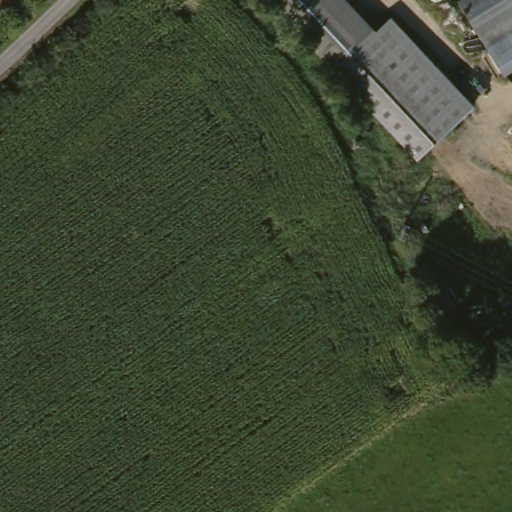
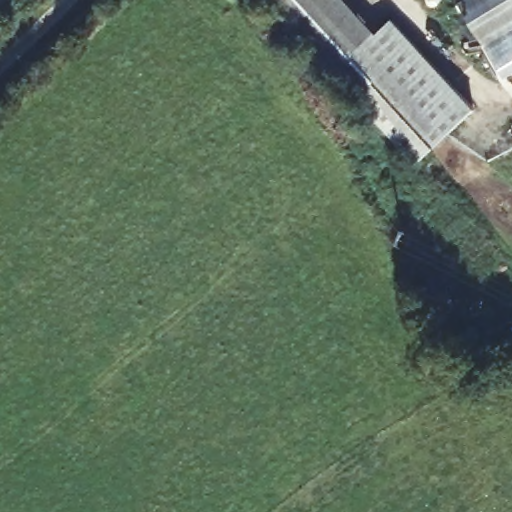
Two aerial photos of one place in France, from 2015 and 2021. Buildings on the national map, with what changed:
unchanged [(373,37),(388,24),(467,116),(412,163),(333,72),(271,0),(341,0),(373,37)]
unchanged [(458,5),(467,0),(512,0),(512,76),(506,80),(458,5)]

